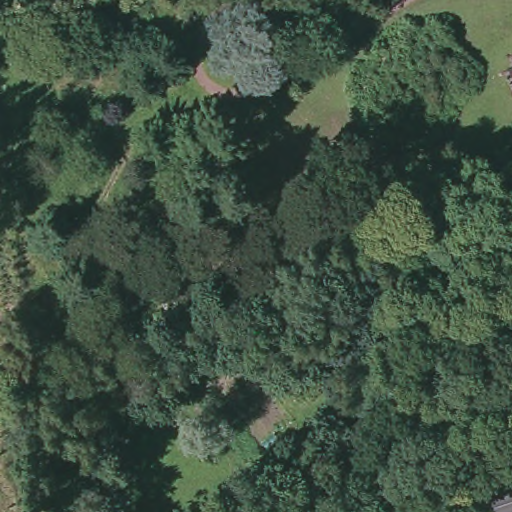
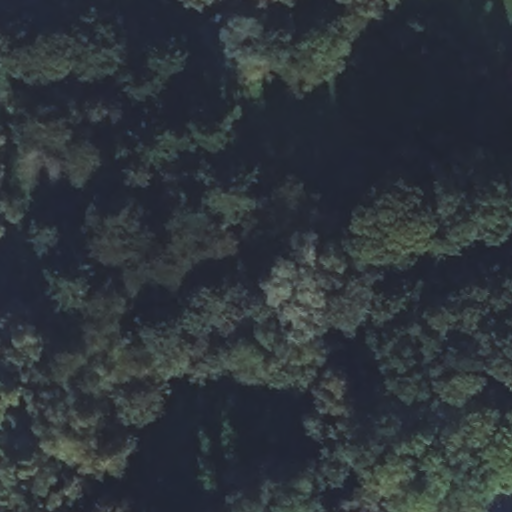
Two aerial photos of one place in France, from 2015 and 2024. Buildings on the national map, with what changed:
unchanged [(512,65),(512,73),(509,66),(512,65)]
unchanged [(512,221),(512,236),(474,261),(472,257),(467,248),(510,219),(512,221)]
unchanged [(340,442),(329,417),(363,405),(372,427),(340,442)]

